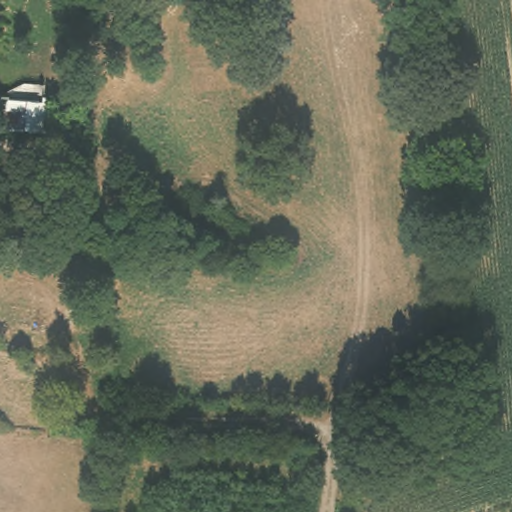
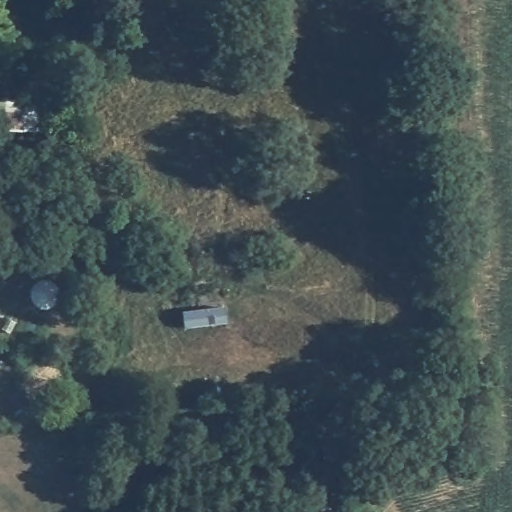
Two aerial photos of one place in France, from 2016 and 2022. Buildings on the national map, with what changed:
unchanged [(34,128),(17,129),(17,102),(36,105),(34,128)]

